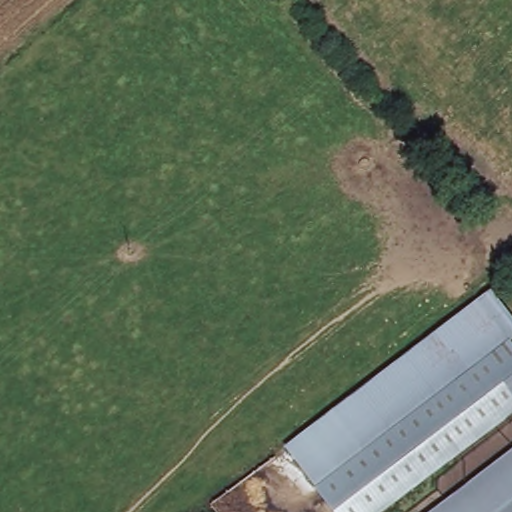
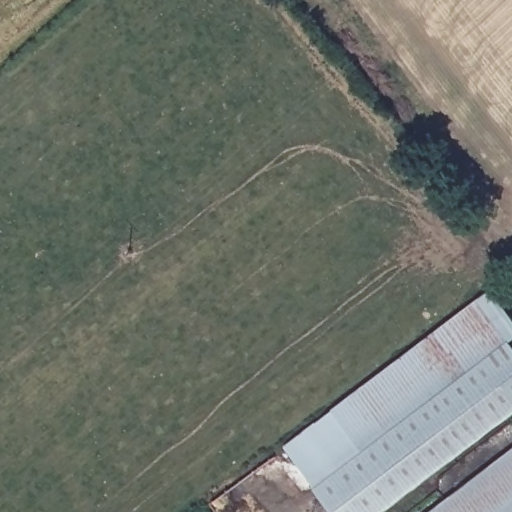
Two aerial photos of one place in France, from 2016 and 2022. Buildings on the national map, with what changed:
unchanged [(512,316),(512,339),(510,340),(479,299),(492,290),(512,316)]
unchanged [(512,342),(512,353),(320,499),(284,449),(479,299),(512,342)]
unchanged [(383,512),(330,512),(320,499),(512,353),(512,415),(383,512)]
unchanged [(432,512),(512,451),(512,512),(432,512)]

